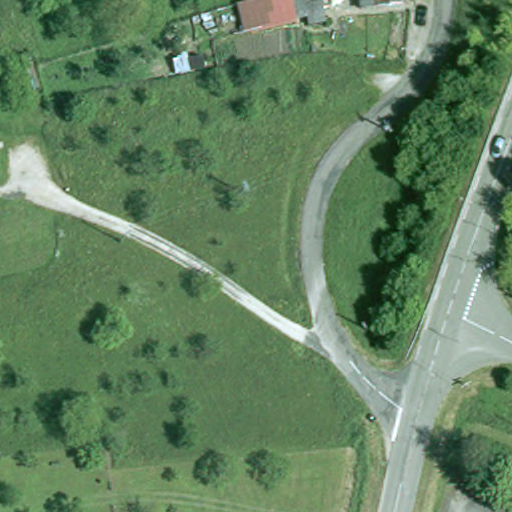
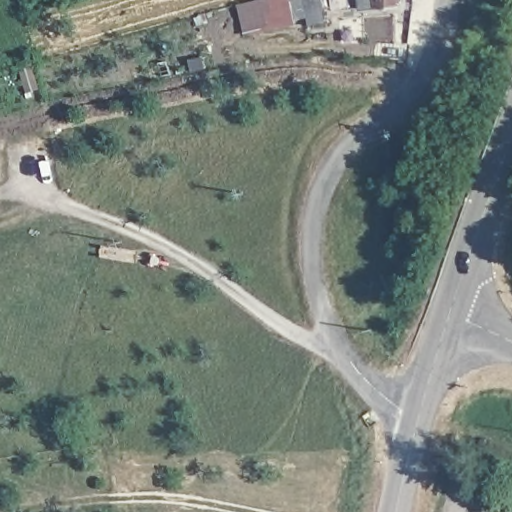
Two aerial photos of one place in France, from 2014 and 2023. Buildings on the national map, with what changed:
unchanged [(307,25),(306,20),(272,26),(270,0),(325,0),(330,21),(307,25)]
unchanged [(367,14),(365,0),(403,0),(405,10),(367,14)]

